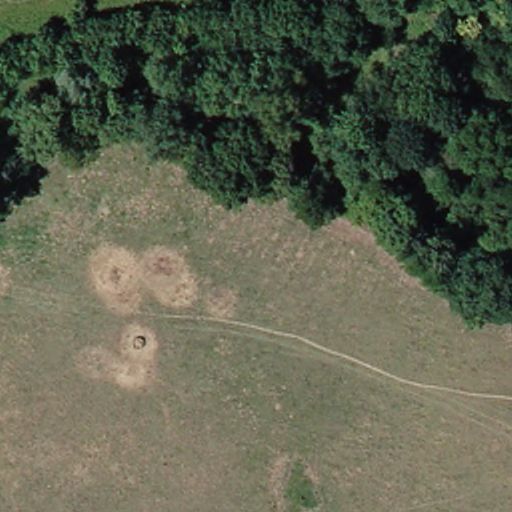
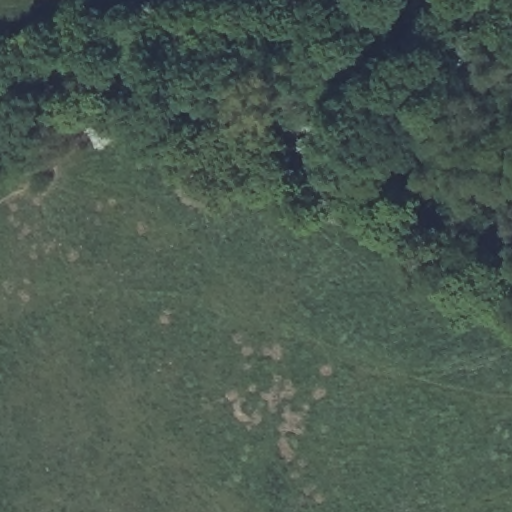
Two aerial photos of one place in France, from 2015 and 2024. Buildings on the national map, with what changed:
[]

